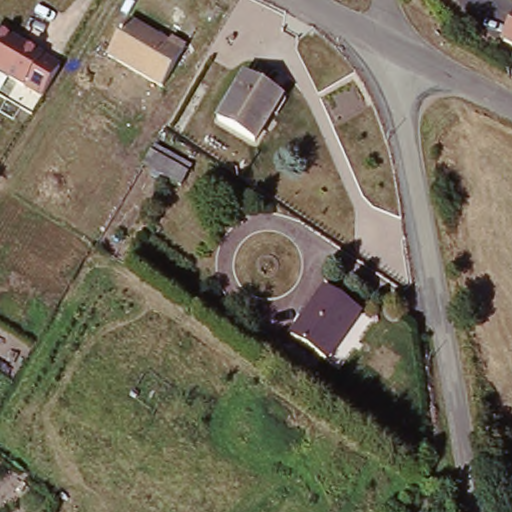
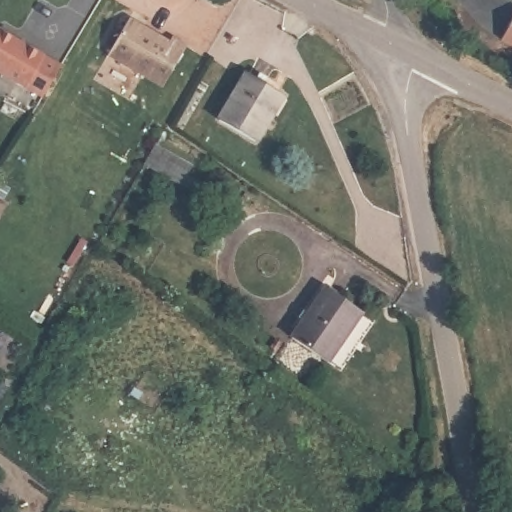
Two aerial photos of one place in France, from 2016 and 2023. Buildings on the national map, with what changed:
unchanged [(512,16),(512,42),(501,36),(512,16)]
unchanged [(129,17),(169,41),(172,36),(186,44),(162,85),(108,55),(129,17)]
unchanged [(47,94),(0,70),(0,21),(65,55),(47,94)]
unchanged [(220,126),(249,79),(287,101),(259,148),(220,126)]
unchanged [(178,133),(171,129),(185,105),(193,109),(178,133)]
unchanged [(183,170),(174,184),(146,167),(154,152),(183,170)]
unchanged [(376,326),(342,377),(289,343),(320,291),(376,326)]

